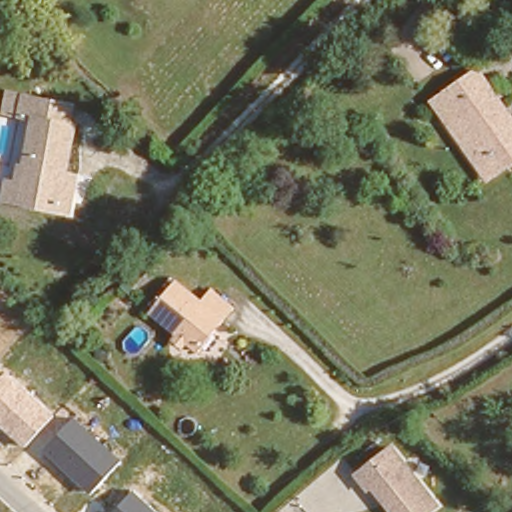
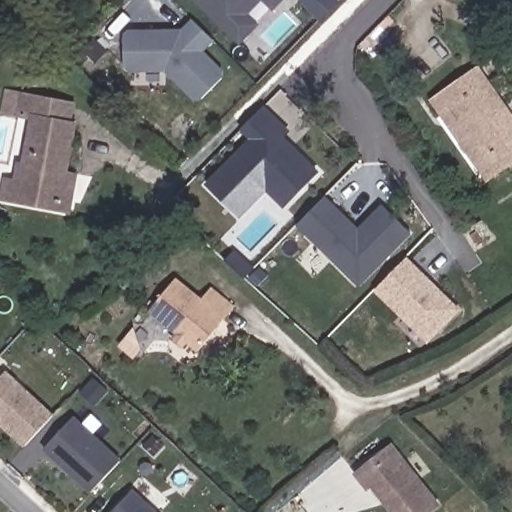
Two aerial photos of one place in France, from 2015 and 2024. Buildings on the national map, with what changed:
new [(254,26),(239,40),(198,0),(258,0),(243,14),(254,26)]
new [(265,0),(279,0),(272,7),(265,0)]
new [(201,50),(213,62),(221,71),(221,80),(201,97),(193,97),(165,70),(128,70),(124,64),(124,37),(128,32),(157,30),(161,36),(168,36),(172,30),(184,31),(193,20),(213,40),(201,50)]
unchanged [(512,122),(512,155),(489,171),(432,90),(471,62),(512,122)]
unchanged [(28,112),(19,110),(23,92),(32,95),(72,103),(69,120),(73,121),(66,168),(77,170),(70,209),(13,197),(28,112)]
new [(248,145),(237,135),(257,113),(268,123),(248,145)]
new [(263,195),(273,183),(237,222),(204,192),(268,123),(283,137),(274,147),(283,155),(286,151),(313,176),(292,200),(281,211),(263,195)]
new [(347,237),(376,208),(403,235),(352,288),(290,228),(317,200),(345,227),(341,231),(347,237)]
new [(452,311),(422,343),(370,292),(400,261),(452,311)]
unchanged [(171,331),(176,326),(149,302),(176,272),(201,293),(211,282),(233,302),(196,344),(185,334),(181,339),(171,331)]
unchanged [(10,371),(57,415),(26,446),(0,421),(0,381),(10,371)]
unchanged [(90,493),(47,450),(77,418),(124,461),(90,493)]
unchanged [(437,510),(434,512),(390,512),(372,490),(368,493),(356,480),(391,452),(437,510)]
unchanged [(137,488),(161,512),(116,512),(137,488)]

